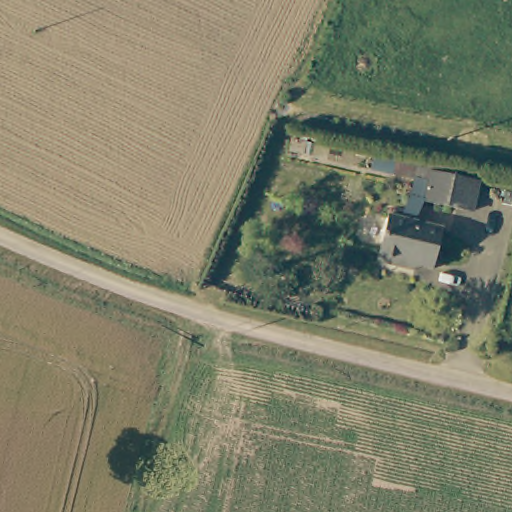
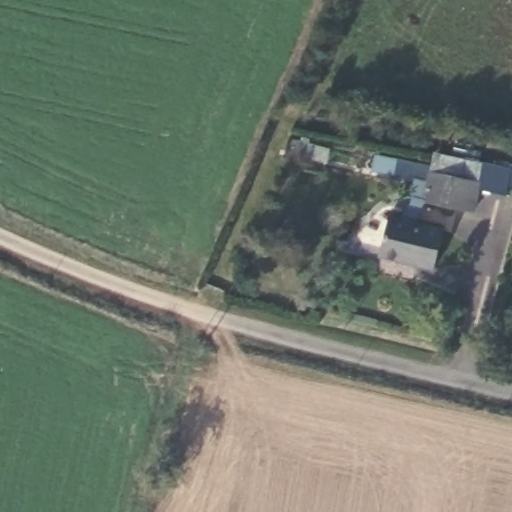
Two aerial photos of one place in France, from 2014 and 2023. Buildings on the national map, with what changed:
unchanged [(472,209),(423,197),(429,168),(479,179),(472,209)]
unchanged [(389,210),(445,224),(435,265),(416,260),(413,267),(377,256),(379,249),(389,210)]

